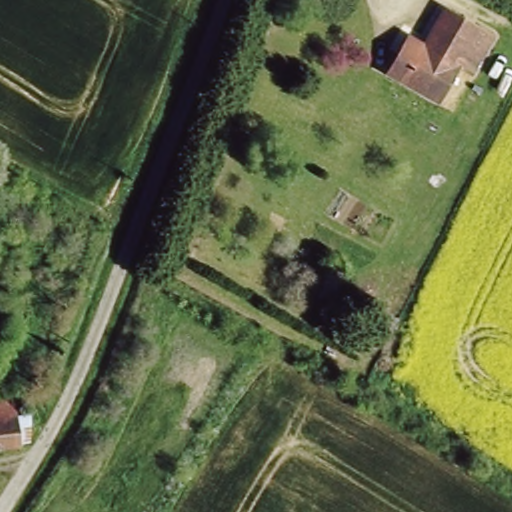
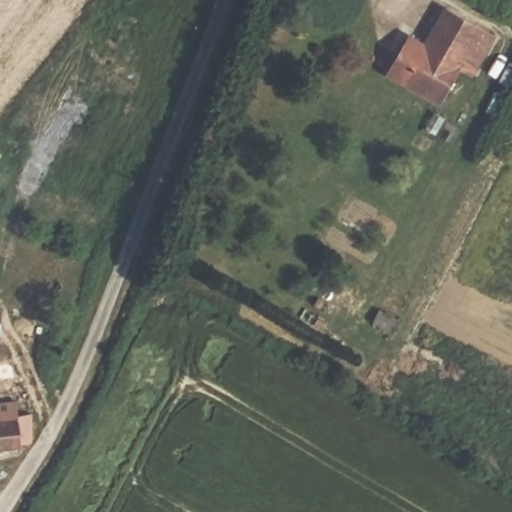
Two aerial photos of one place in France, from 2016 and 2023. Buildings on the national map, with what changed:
unchanged [(494,37),(472,77),(459,69),(438,104),(387,74),(408,39),(422,48),(446,8),(494,37)]
unchanged [(397,322),(390,333),(371,321),(379,310),(397,322)]
unchanged [(334,348),(326,363),(316,358),(324,343),(334,348)]
unchanged [(20,438),(20,444),(0,446),(0,401),(17,399),(19,414),(30,413),(30,414),(33,436),(20,438)]

